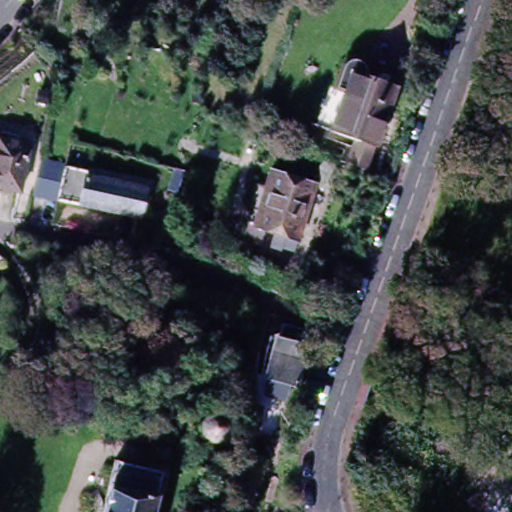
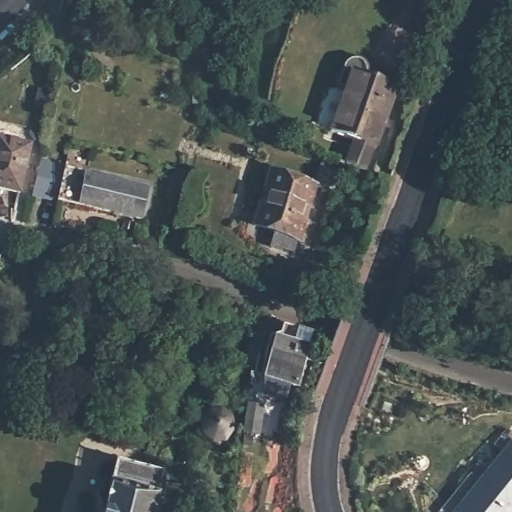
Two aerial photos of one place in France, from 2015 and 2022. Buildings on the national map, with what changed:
unchanged [(399,86),(378,146),(334,131),(349,92),(339,89),(347,67),(349,65),(351,62),(355,60),(358,60),(361,60),(366,61),(368,64),(369,66),(371,71),(371,76),(399,86)]
unchanged [(30,144),(19,191),(0,187),(0,137),(30,144)]
unchanged [(87,178),(120,183),(148,190),(143,219),(59,200),(34,194),(38,182),(42,162),(67,168),(88,172),(87,178)]
unchanged [(279,245),(278,247),(269,245),(274,229),(249,221),(266,167),(312,182),(295,236),(291,249),(279,245)]
unchanged [(286,385),(265,378),(266,372),(269,363),(274,347),(277,335),(305,342),(302,355),(298,371),(291,370),(289,378),(286,385)]
new [(457,512),(512,446),(512,512),(457,512)]
unchanged [(164,471),(154,512),(104,512),(117,458),(164,471)]

